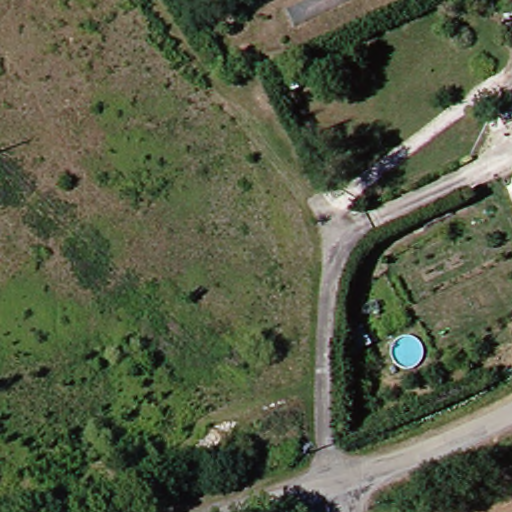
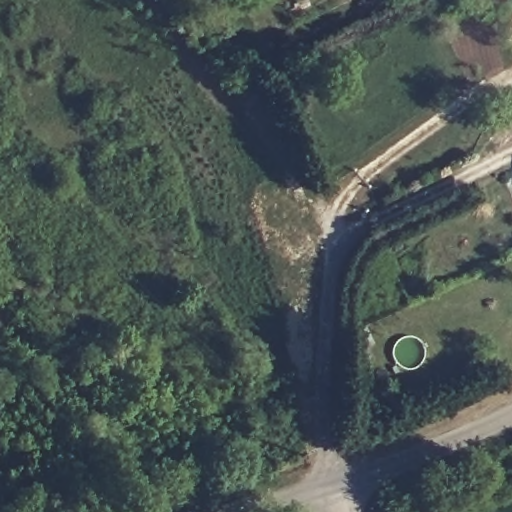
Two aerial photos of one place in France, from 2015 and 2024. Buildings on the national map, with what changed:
unchanged [(273,463),(271,452),(290,445),(293,458),(273,463)]

